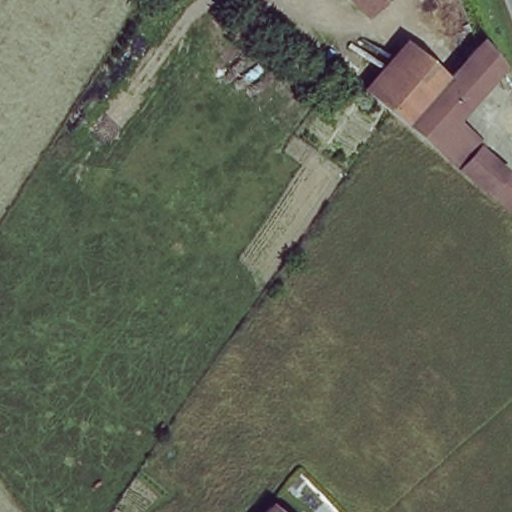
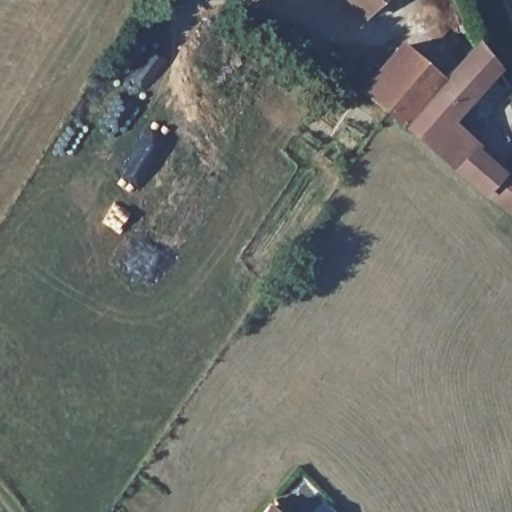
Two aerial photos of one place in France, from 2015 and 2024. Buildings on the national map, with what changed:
unchanged [(377,0),(369,8),(361,0),(377,0)]
unchanged [(423,68),(443,84),(478,38),(497,66),(451,125),(480,147),(476,152),(503,175),(499,180),(509,188),(512,184),(512,213),(389,111),(423,68)]
unchanged [(366,93),(401,49),(423,68),(389,111),(366,93)]
unchanged [(279,512),(267,512),(272,506),(279,512)]

